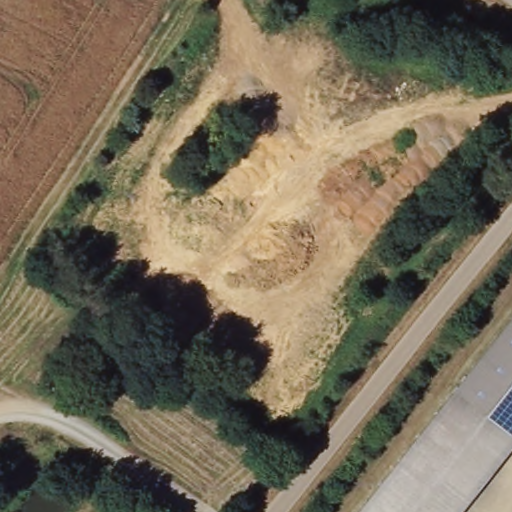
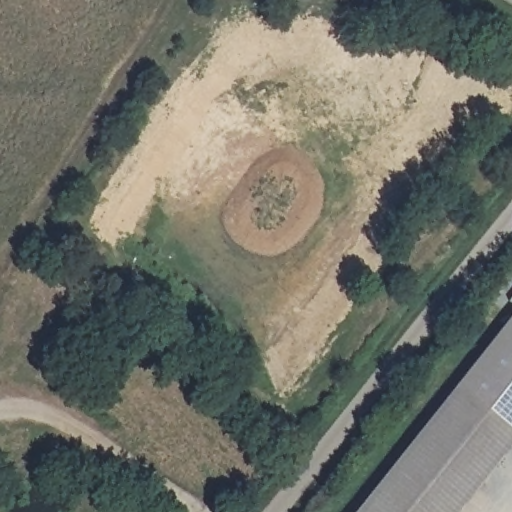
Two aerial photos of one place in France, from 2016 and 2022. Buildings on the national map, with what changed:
unchanged [(512,308),(512,437),(450,387),(512,308)]
unchanged [(512,437),(512,447),(460,512),(351,512),(450,387),(512,437)]

